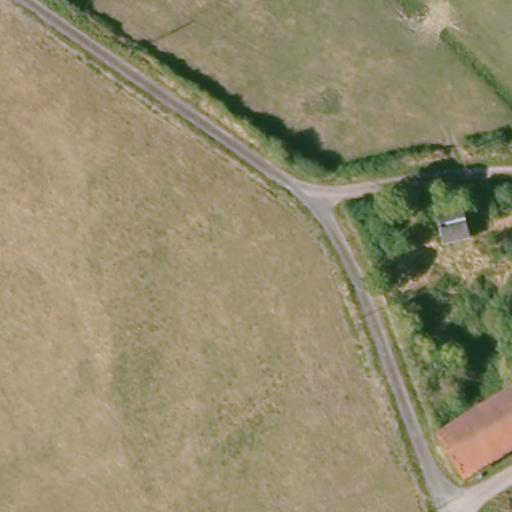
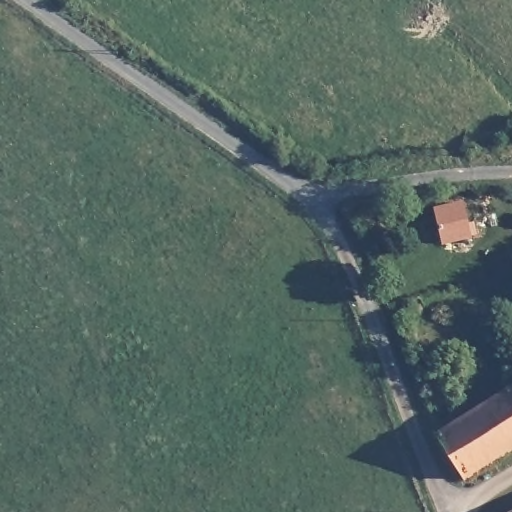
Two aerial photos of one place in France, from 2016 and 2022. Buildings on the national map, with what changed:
unchanged [(464,199),(470,236),(465,237),(449,240),(442,203),(461,199),(464,199)]
unchanged [(476,476),(472,478),(444,432),(448,429),(512,391),(512,453),(476,476)]

